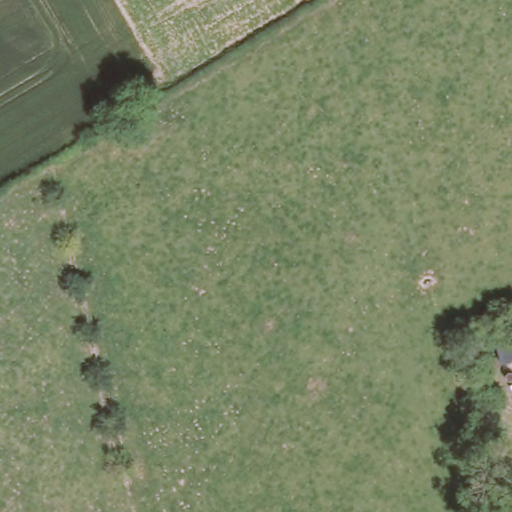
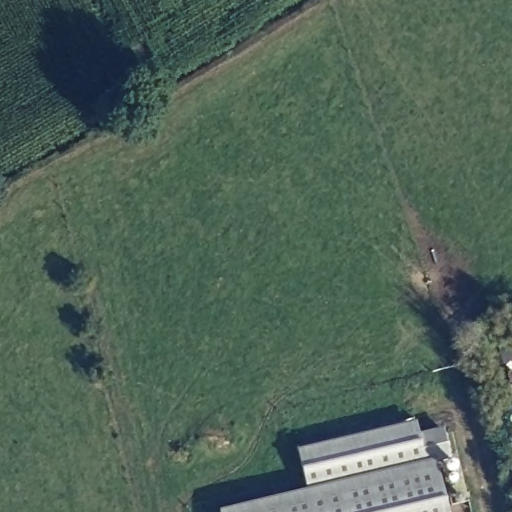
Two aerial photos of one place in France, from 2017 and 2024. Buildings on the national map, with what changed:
new [(305,492),(295,451),(412,423),(415,436),(440,431),(447,460),(432,463),(444,512),(223,512),(305,492)]

